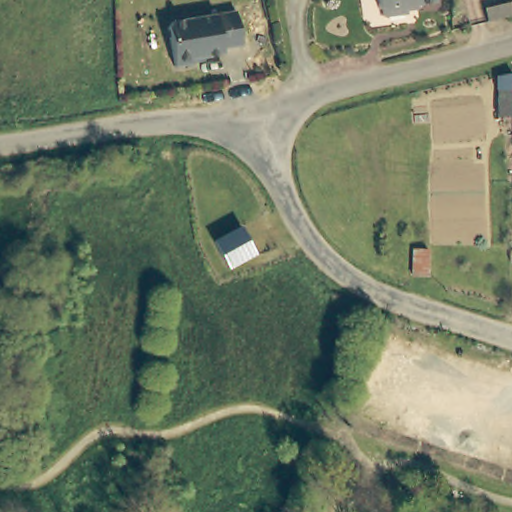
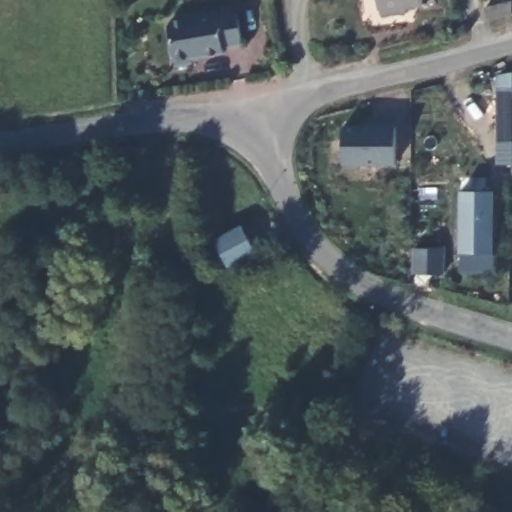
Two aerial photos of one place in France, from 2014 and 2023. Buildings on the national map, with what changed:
unchanged [(434,2),(403,6),(404,12),(381,15),(380,9),(378,9),(376,0),(433,0),(434,2)]
unchanged [(485,25),(483,13),(510,5),(510,18),(485,25)]
unchanged [(235,10),(241,44),(221,47),(222,52),(190,57),(191,63),(175,65),(168,26),(173,20),(235,10)]
new [(496,75),(512,73),(512,165),(498,165),(496,75)]
demolished [(512,109),(512,117),(497,117),(497,89),(512,89),(512,109)]
new [(397,167),(344,167),(343,127),(395,127),(397,167)]
new [(495,254),(461,253),(460,191),(494,191),(495,254)]
unchanged [(256,253),(230,268),(214,241),(241,227),(256,253)]

